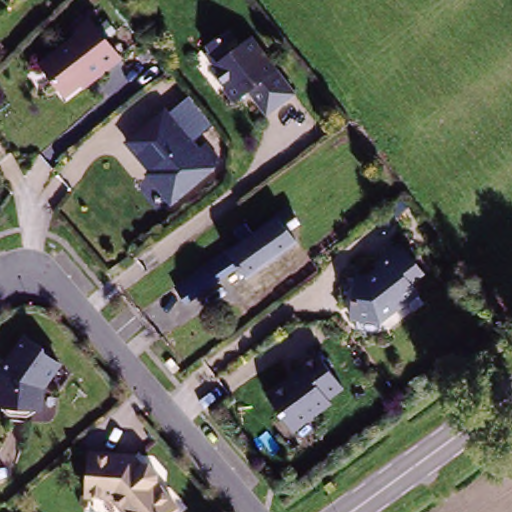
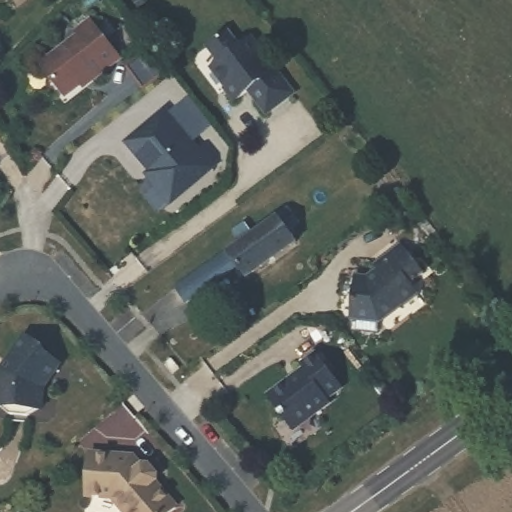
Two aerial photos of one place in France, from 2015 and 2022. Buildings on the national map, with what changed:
unchanged [(128,61),(99,83),(97,80),(76,97),(70,96),(48,68),(85,38),(80,32),(95,20),(128,61)]
unchanged [(223,66),(227,63),(215,47),(236,31),(248,47),(260,37),(303,93),(275,114),(261,95),(256,91),(242,102),(233,90),(234,89),(219,69),(223,66)]
unchanged [(173,112),(206,153),(213,147),(222,159),(215,164),(219,170),(177,204),(163,187),(166,183),(134,143),(173,112)]
unchanged [(256,280),(246,268),(195,305),(183,289),(234,252),(236,253),(248,244),(242,234),(253,226),(259,235),(284,218),(283,217),(294,210),(304,224),(293,232),(301,245),(256,280)]
unchanged [(379,278),(388,271),(383,265),(408,244),(433,274),(419,285),(428,295),(413,307),(411,305),(389,322),(360,319),(365,277),(379,278)]
unchanged [(42,347),(43,351),(58,363),(43,385),(40,406),(38,406),(26,412),(8,410),(0,404),(0,365),(23,333),(42,347)]
unchanged [(272,396),(295,379),(309,369),(306,365),(321,353),(347,388),(333,399),(336,404),(299,431),(272,396)]
unchanged [(154,465),(159,466),(168,475),(167,481),(166,482),(187,508),(182,512),(135,512),(123,498),(96,496),(99,454),(143,457),(152,467),(154,465)]

